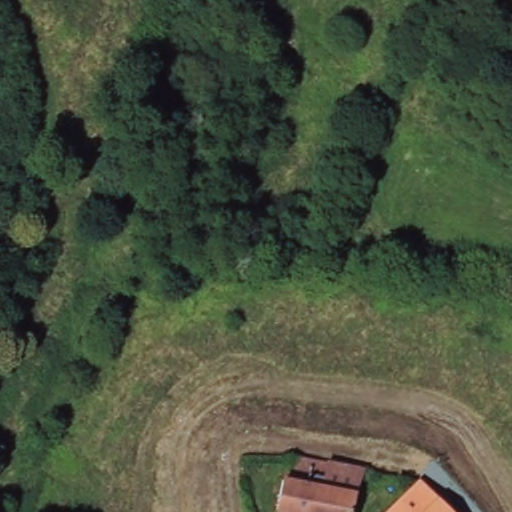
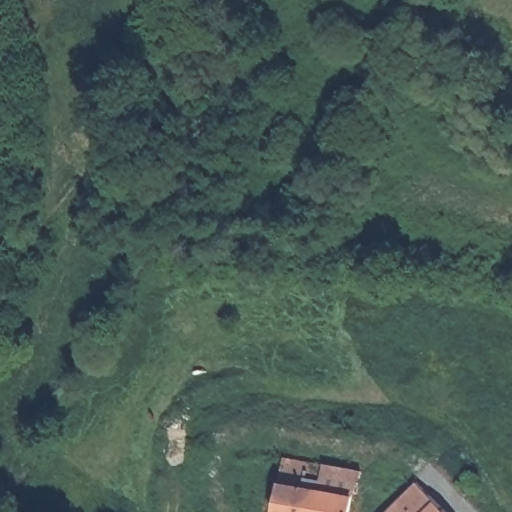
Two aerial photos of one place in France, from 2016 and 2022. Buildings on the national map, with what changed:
unchanged [(355,512),(284,512),(280,511),(291,453),(365,469),(355,512)]
unchanged [(421,485),(446,512),(392,512),(421,485)]

